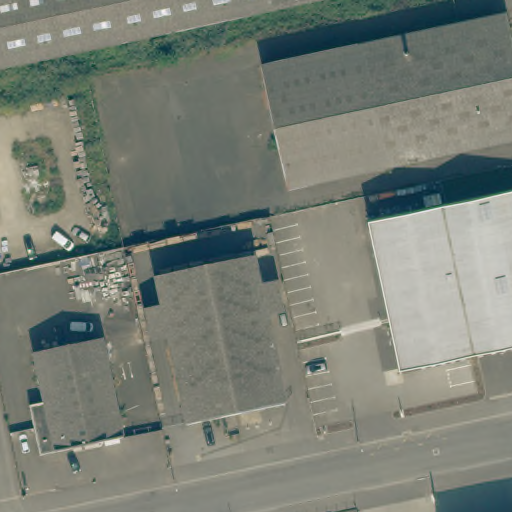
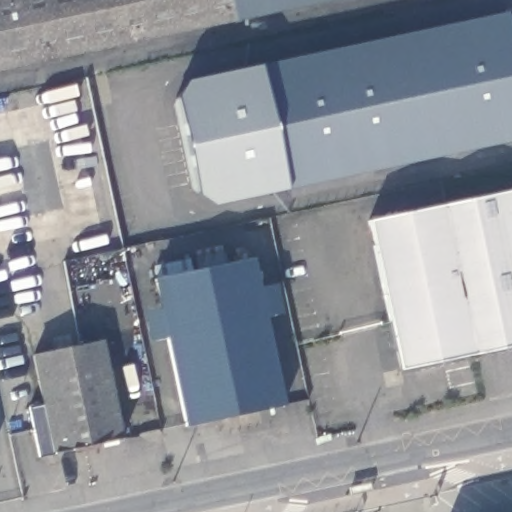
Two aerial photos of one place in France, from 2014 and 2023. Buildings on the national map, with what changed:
unchanged [(327,0),(0,70),(0,0),(327,0)]
unchanged [(508,13),(512,32),(512,140),(287,187),(261,64),(508,13)]
new [(287,187),(214,205),(197,194),(177,96),(187,80),(261,64),(287,187)]
unchanged [(512,344),(400,367),(369,221),(506,192),(512,191),(512,344)]
unchanged [(156,277),(254,257),(267,317),(286,404),(188,425),(169,337),(162,306),(156,277)]
unchanged [(30,407),(45,403),(35,355),(103,340),(124,438),(40,456),(30,407)]

